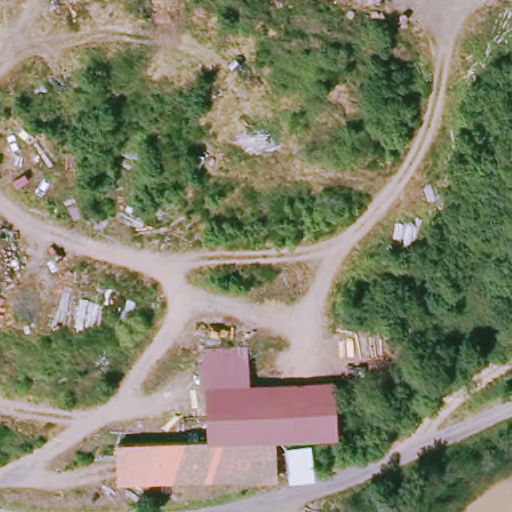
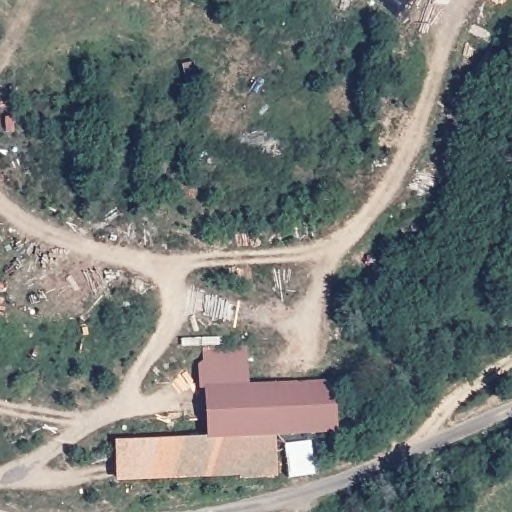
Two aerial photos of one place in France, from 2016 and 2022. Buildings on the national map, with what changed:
unchanged [(200,345),(241,347),(239,384),(327,387),(325,437),(261,435),(261,453),(198,452),(198,436),(200,345)]
unchanged [(198,436),(198,452),(261,453),(260,484),(219,483),(219,477),(112,475),(112,435),(198,436)]
unchanged [(283,485),(283,456),(309,458),(308,485),(283,485)]

